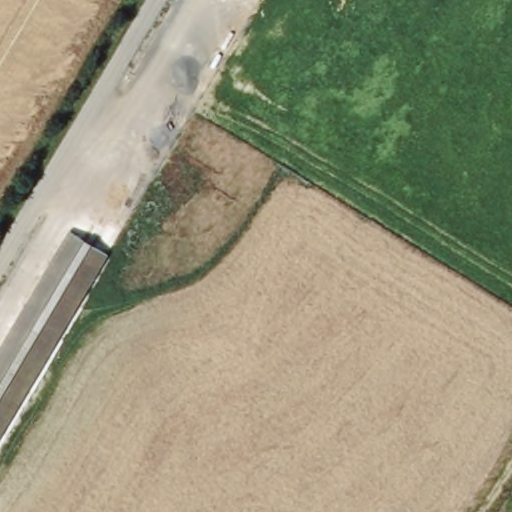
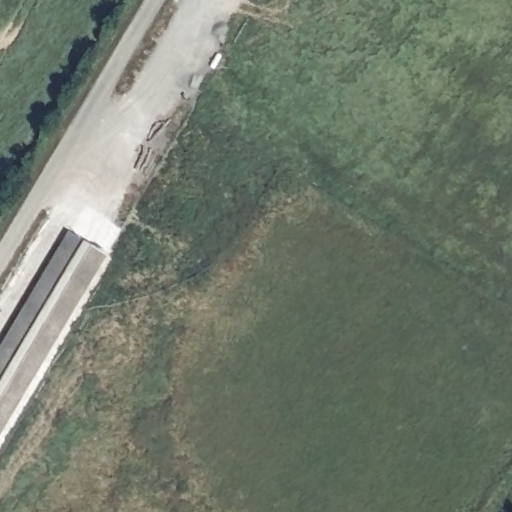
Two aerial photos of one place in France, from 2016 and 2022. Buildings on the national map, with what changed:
unchanged [(107,258),(0,439),(0,354),(70,236),(107,258)]

